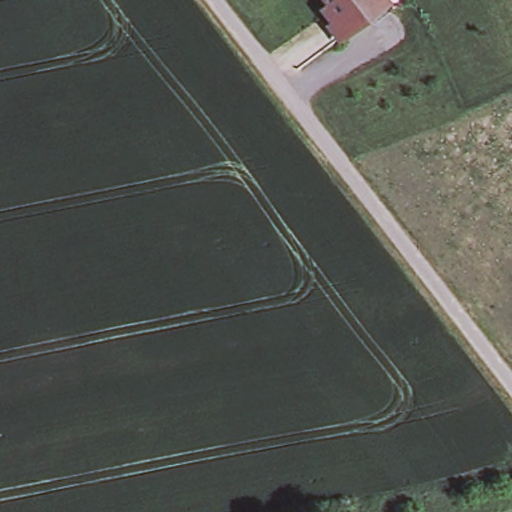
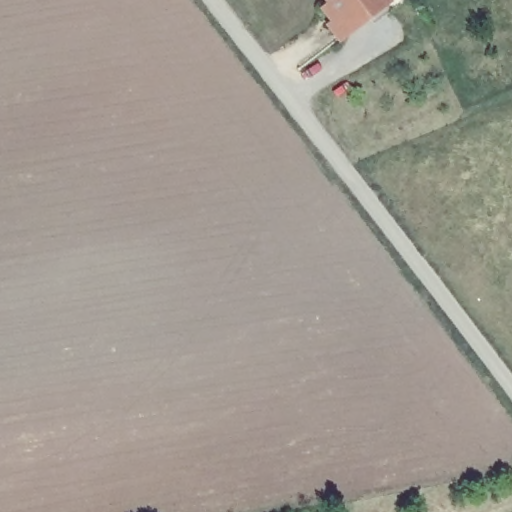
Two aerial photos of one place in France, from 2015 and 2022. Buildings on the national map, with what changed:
unchanged [(332,0),(395,0),(398,4),(378,19),(373,11),(343,35),(333,22),(338,18),(326,5),(332,0)]

